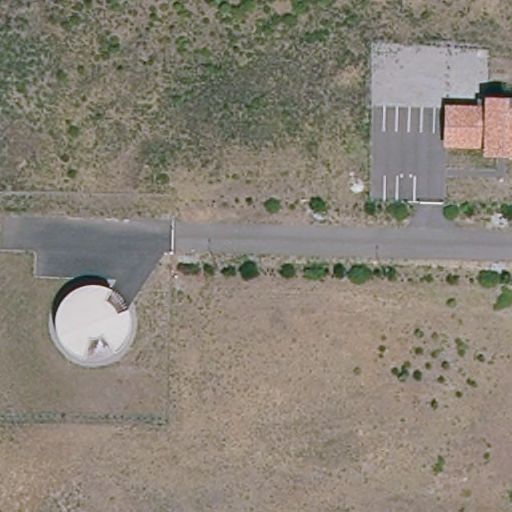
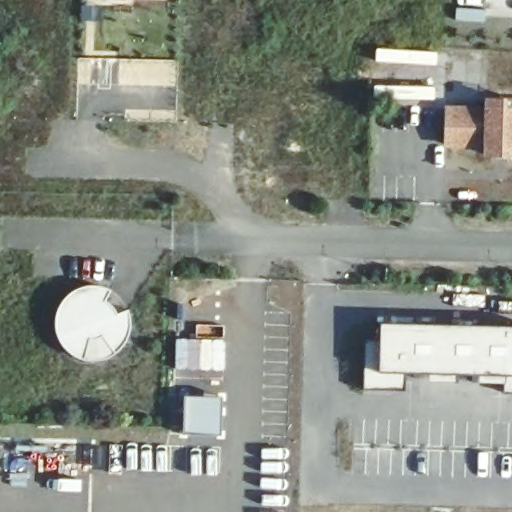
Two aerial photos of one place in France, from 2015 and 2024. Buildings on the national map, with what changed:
unchanged [(445,104),(484,106),(484,96),(507,95),(507,104),(512,104),(512,154),(485,154),(485,147),(445,145),(445,104)]
unchanged [(107,286),(119,292),(128,305),(132,315),(132,333),(124,346),(112,355),(100,359),(82,358),(69,350),(57,336),(55,323),(57,307),(66,295),(79,287),(91,285),(107,286)]
new [(506,390),(506,382),(481,381),(481,373),(457,373),(458,382),(430,382),(430,371),(406,371),(406,387),(366,386),(368,339),(382,338),(382,323),(512,327),(512,390),(506,390)]
new [(175,337),(196,337),(196,325),(214,325),(214,336),(224,336),(224,371),(174,370),(175,337)]
new [(184,395),(221,396),(220,435),(182,432),(184,395)]

